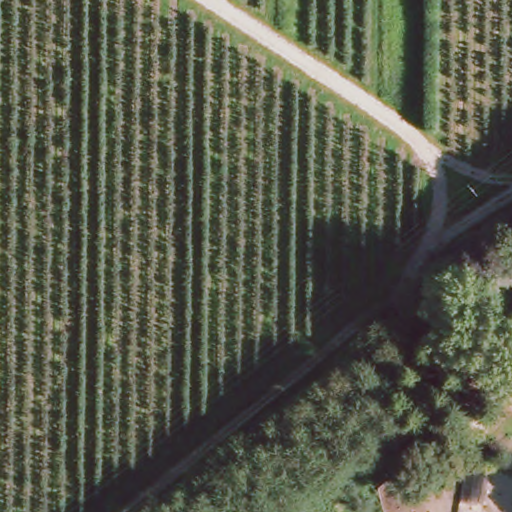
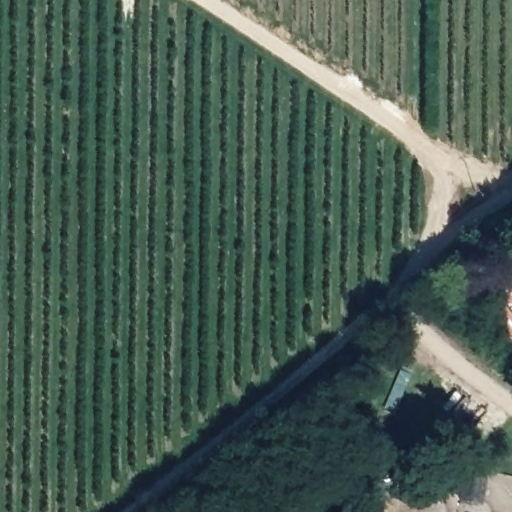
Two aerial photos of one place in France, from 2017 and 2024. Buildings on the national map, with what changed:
[]

